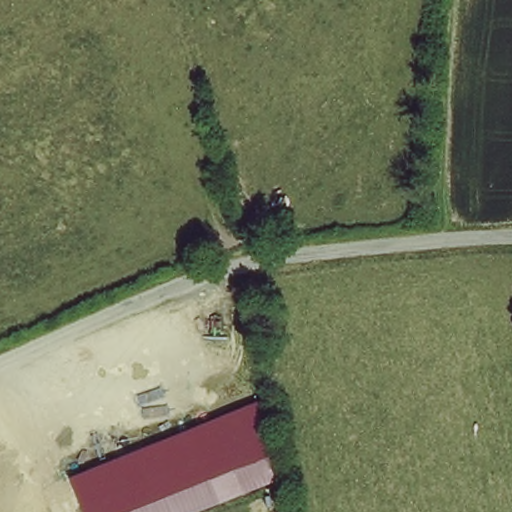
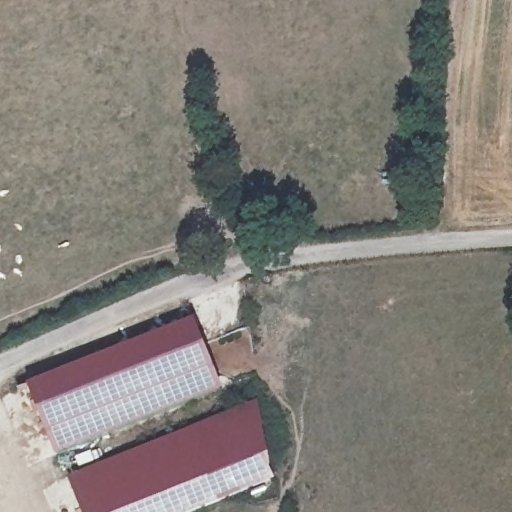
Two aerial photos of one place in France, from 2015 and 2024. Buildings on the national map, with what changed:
new [(25,386),(191,321),(221,389),(54,456),(25,386)]
unchanged [(258,401),(270,481),(194,512),(78,512),(66,477),(258,401)]

